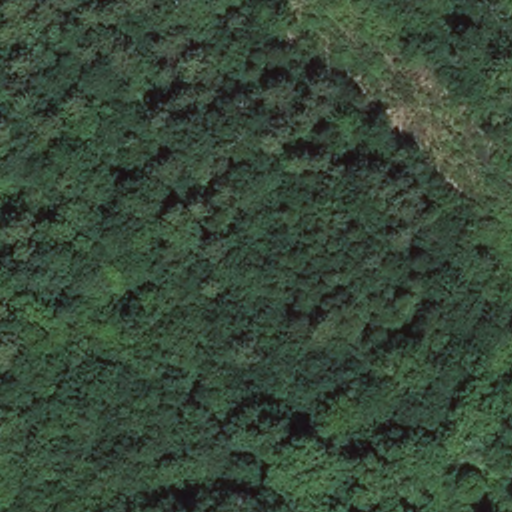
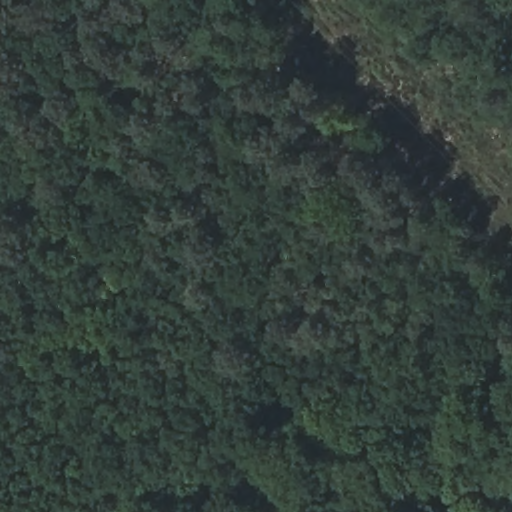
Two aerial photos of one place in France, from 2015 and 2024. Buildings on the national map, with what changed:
[]

